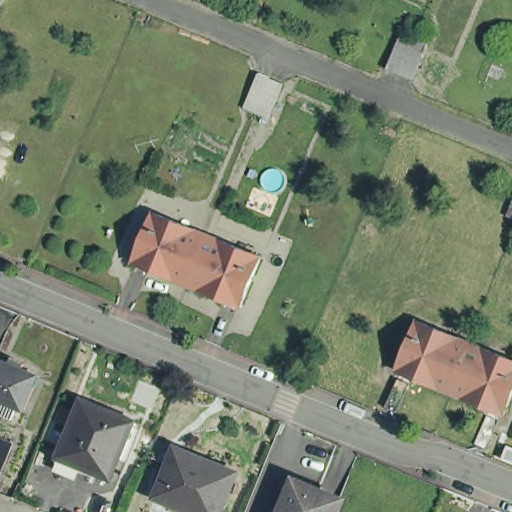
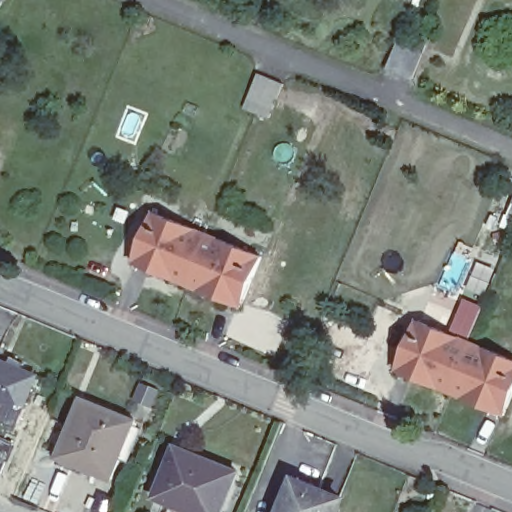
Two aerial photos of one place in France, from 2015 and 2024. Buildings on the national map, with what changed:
unchanged [(0,0),(10,0),(5,10),(0,8),(0,0)]
unchanged [(390,69),(405,32),(430,43),(415,79),(390,69)]
unchanged [(285,89),(271,123),(246,113),(260,78),(285,89)]
unchanged [(510,219),(512,214),(512,220),(510,219)]
unchanged [(205,241),(185,290),(131,268),(151,219),(205,241)]
unchanged [(258,263),(238,312),(185,290),(205,241),(258,263)]
unchanged [(470,345),(451,393),(398,371),(418,323),(470,345)]
unchanged [(512,362),(512,397),(505,415),(451,393),(470,345),(512,362)]
unchanged [(5,405),(0,403),(0,365),(10,369),(15,364),(28,369),(25,376),(38,382),(25,413),(20,411),(15,423),(0,417),(5,405)]
unchanged [(139,422),(115,479),(62,457),(86,400),(139,422)]
unchanged [(1,472),(0,471),(0,438),(12,443),(1,472)]
unchanged [(165,477),(175,449),(232,473),(217,512),(185,512),(151,498),(160,476),(165,477)]
unchanged [(300,493),(345,510),(344,512),(292,512),(300,493)]

